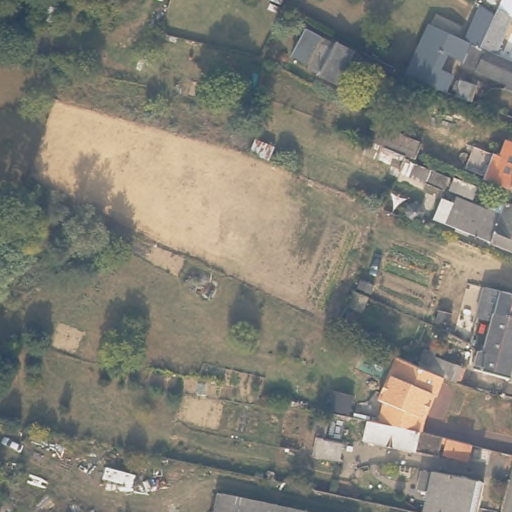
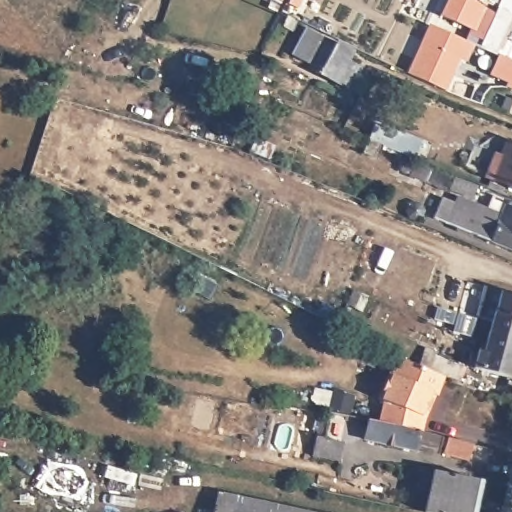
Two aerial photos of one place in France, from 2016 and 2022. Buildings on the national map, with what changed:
unchanged [(499,14),(505,0),(512,0),(512,27),(501,51),(486,45),(499,14)]
unchanged [(463,60),(450,55),(444,68),(457,74),(450,90),(420,76),(408,71),(431,22),(467,38),(483,3),(499,14),(486,45),(479,41),(470,59),(464,56),(463,60)]
unchanged [(324,44),(313,66),(300,61),(312,38),(324,44)]
unchanged [(483,66),(470,60),(470,59),(479,41),(486,45),(501,51),(512,56),(512,81),(483,68),(483,66)]
unchanged [(358,61),(353,71),(360,76),(348,96),(313,76),(326,53),(336,59),(340,52),(358,61)]
unchanged [(483,85),(477,101),(461,95),(463,90),(457,88),(461,78),(483,85)]
unchanged [(512,83),(512,87),(511,86),(512,83)]
unchanged [(362,160),(367,148),(373,134),(422,153),(416,168),(405,164),(400,176),(362,160)]
unchanged [(275,147),(270,160),(251,152),(257,140),(275,147)]
unchanged [(512,197),(482,185),(491,164),(496,166),(502,151),(512,154),(512,197)]
unchanged [(447,187),(441,200),(423,192),(420,198),(405,191),(413,172),(447,187)]
unchanged [(476,198),(471,209),(447,199),(452,187),(476,198)]
unchanged [(487,217),(501,223),(505,212),(512,214),(512,258),(431,228),(440,206),(484,224),(487,217)]
unchanged [(371,293),(363,309),(348,302),(356,287),(371,293)]
unchanged [(498,326),(481,322),(489,292),(506,296),(512,297),(512,320),(501,317),(498,326)]
unchanged [(484,355),(490,357),(498,326),(501,317),(512,320),(512,381),(480,373),(484,355)]
unchanged [(379,399),(386,379),(396,356),(398,357),(430,367),(438,351),(465,364),(456,379),(451,377),(445,374),(437,393),(432,391),(422,412),(425,415),(421,430),(421,431),(395,425),(380,422),(384,401),(379,399)]
unchanged [(380,422),(395,425),(421,431),(421,430),(427,432),(448,438),(468,443),(491,447),(488,462),(444,452),(446,446),(440,445),(437,454),(366,440),(370,420),(380,422)]
unchanged [(345,469),(318,464),(321,446),(318,444),(321,427),(334,429),(331,447),(349,451),(345,469)]
unchanged [(489,486),(484,512),(429,512),(433,495),(422,493),(427,474),(437,476),(438,475),(489,486)]
unchanged [(219,498),(291,512),(216,512),(219,498)]

